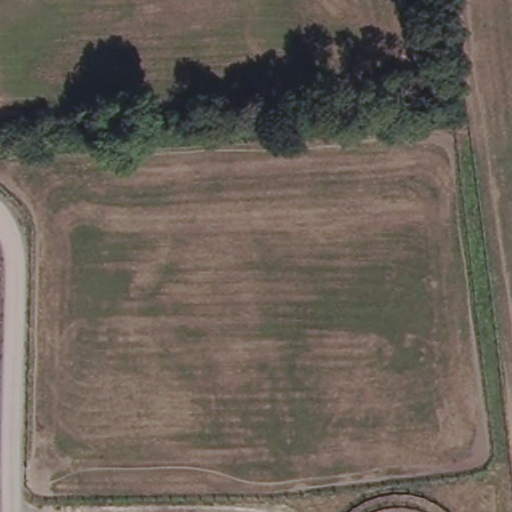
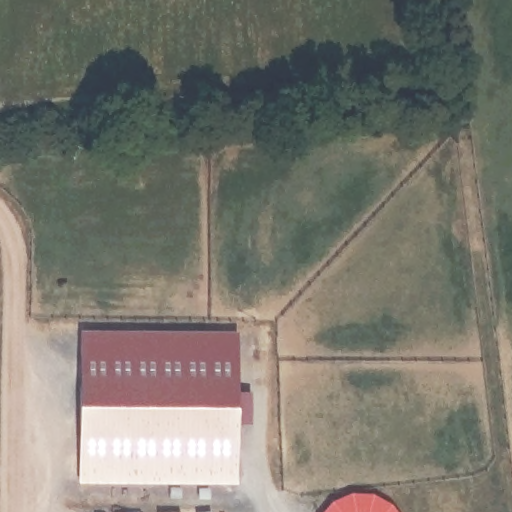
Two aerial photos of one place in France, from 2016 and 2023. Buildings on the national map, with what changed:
new [(234,337),(233,484),(75,482),(75,336),(234,337)]
new [(325,507),(333,501),(341,496),(351,493),(360,492),(370,493),(379,496),(388,501),(396,507),(400,512),(321,512),(325,507)]

